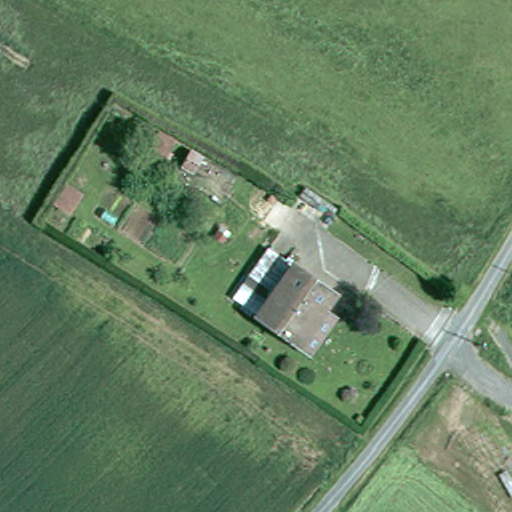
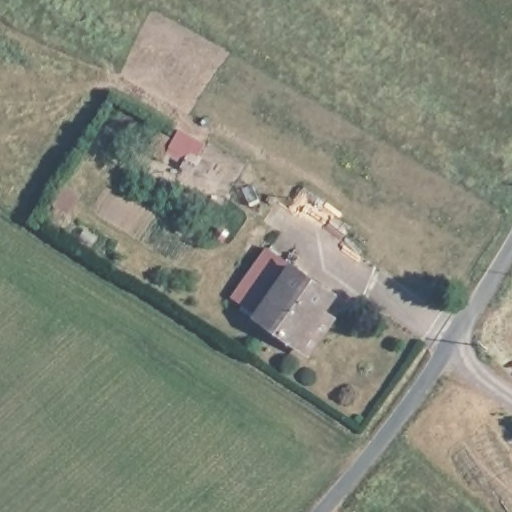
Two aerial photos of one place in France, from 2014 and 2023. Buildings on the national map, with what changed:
unchanged [(284,263),(348,307),(335,324),(349,334),(326,367),(247,313),(284,263)]

